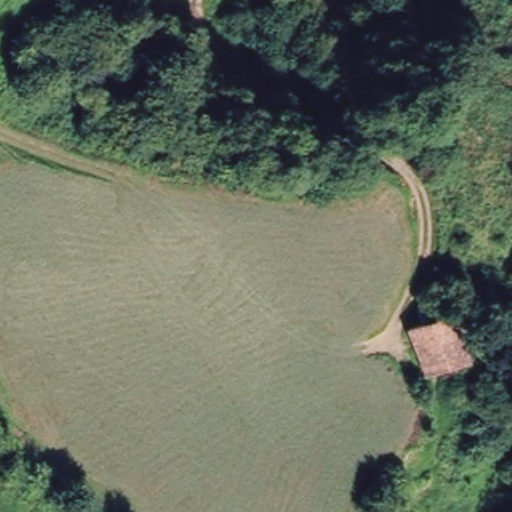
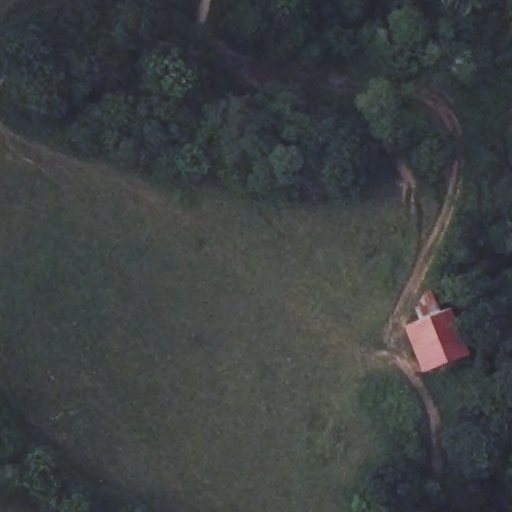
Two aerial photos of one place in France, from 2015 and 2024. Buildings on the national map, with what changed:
unchanged [(410,321),(451,302),(467,344),(427,365),(410,321)]

